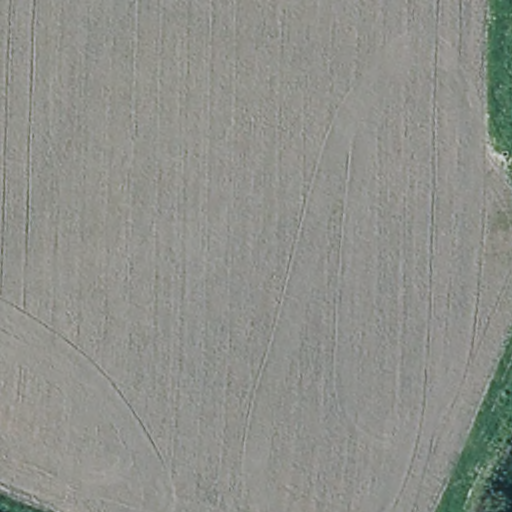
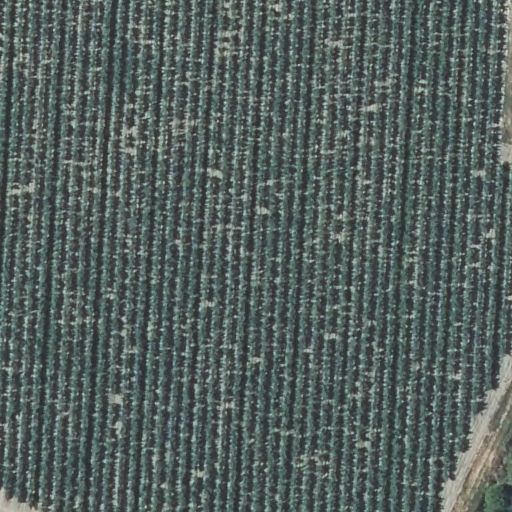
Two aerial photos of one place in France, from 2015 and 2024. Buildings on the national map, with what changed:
[]

